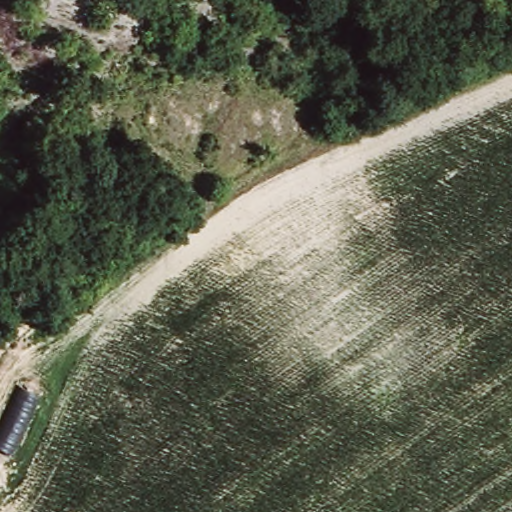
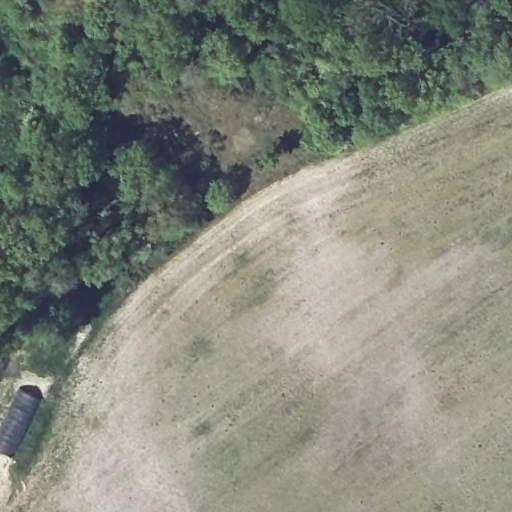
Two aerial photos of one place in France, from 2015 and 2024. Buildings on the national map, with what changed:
[]

